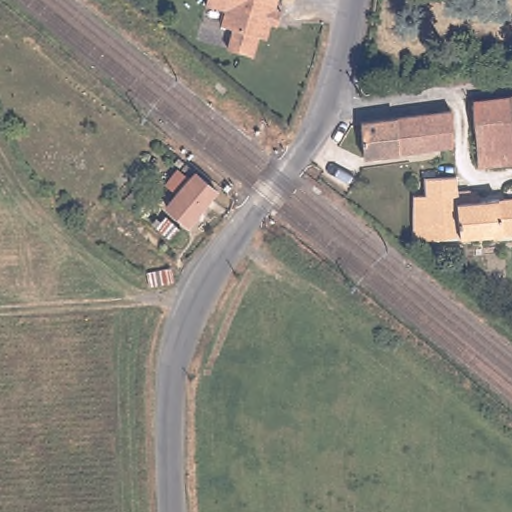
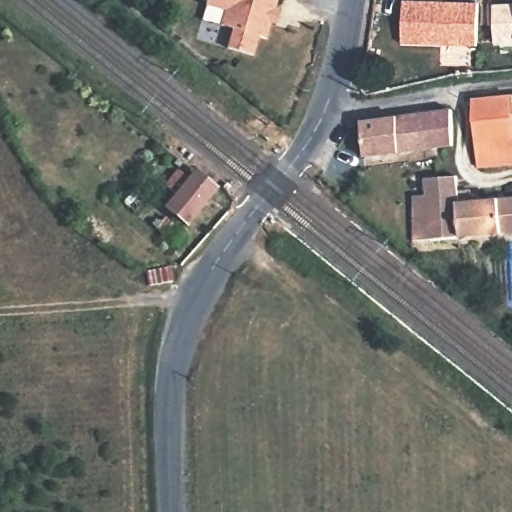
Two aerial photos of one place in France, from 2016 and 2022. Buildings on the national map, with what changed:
unchanged [(279,27),(273,25),(268,40),(260,39),(255,57),(229,49),(234,30),(223,26),(227,12),(208,7),(210,0),(281,0),(277,11),(283,13),(279,27)]
new [(401,0),(477,2),(476,46),(400,44),(401,0)]
new [(512,3),(512,44),(492,44),(491,3),(512,3)]
unchanged [(512,93),(512,160),(480,160),(476,96),(512,93)]
unchanged [(422,112),(452,108),(455,143),(433,145),(366,153),(364,118),(422,112)]
unchanged [(199,172),(218,187),(213,194),(191,223),(170,207),(194,177),(199,172)]
unchanged [(439,237),(433,238),(421,236),(417,235),(417,221),(430,221),(430,213),(417,213),(416,194),(429,193),(427,176),(460,174),(461,188),(466,235),(439,237)]
unchanged [(474,188),(474,200),(512,197),(512,231),(466,235),(461,188),(474,188)]
unchanged [(158,271),(171,267),(173,280),(161,282),(150,284),(148,268),(158,271)]

